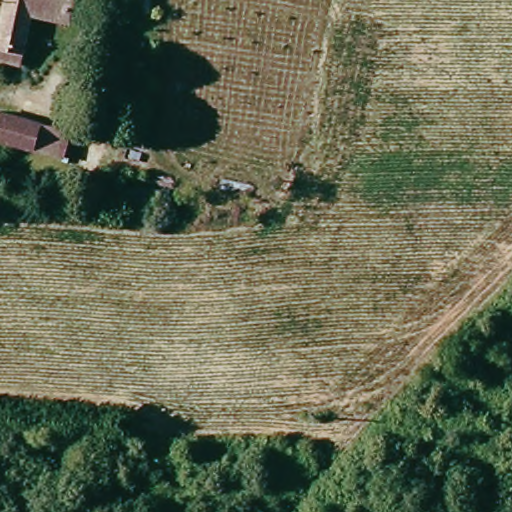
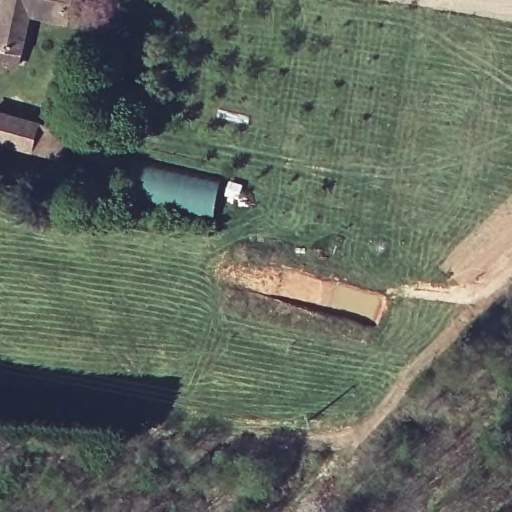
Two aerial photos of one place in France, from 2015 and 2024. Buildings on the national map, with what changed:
unchanged [(32,15),(5,8),(6,0),(64,0),(61,19),(32,15)]
unchanged [(0,54),(0,34),(5,8),(32,15),(24,59),(0,54)]
unchanged [(39,155),(4,147),(0,146),(0,114),(45,124),(62,127),(56,159),(39,155)]
new [(220,190),(215,218),(140,196),(132,178),(136,162),(171,172),(220,190)]

